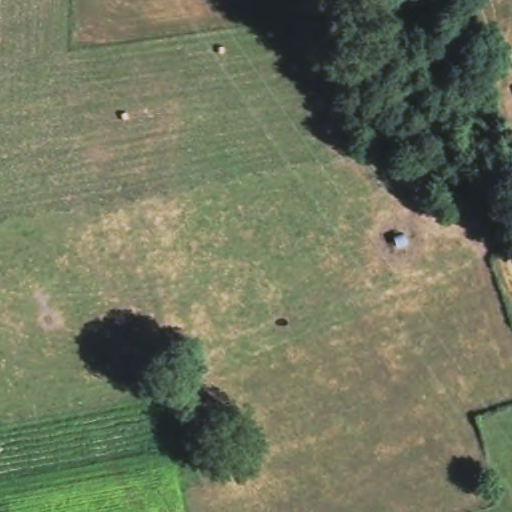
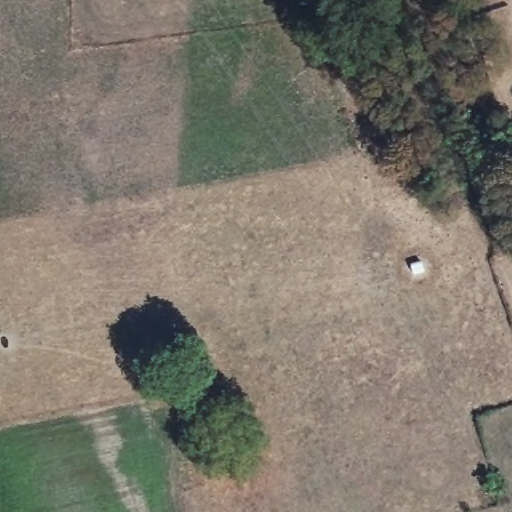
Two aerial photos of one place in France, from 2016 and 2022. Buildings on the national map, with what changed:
[]

